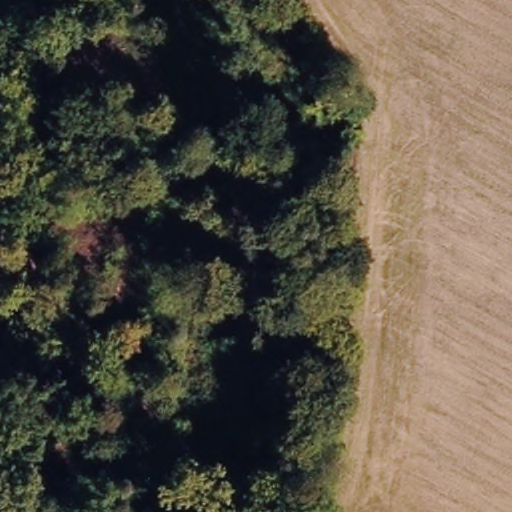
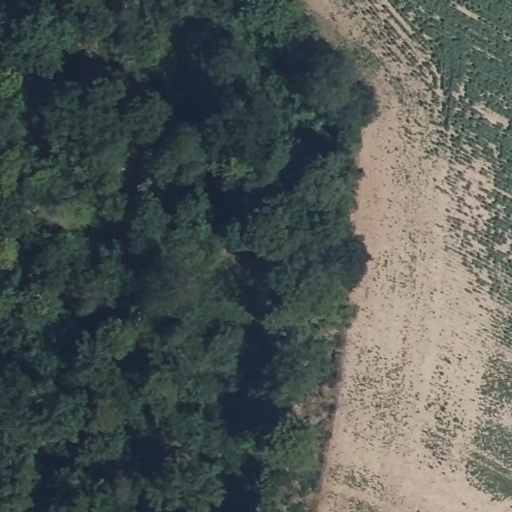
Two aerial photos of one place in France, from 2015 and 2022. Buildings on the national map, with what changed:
[]

